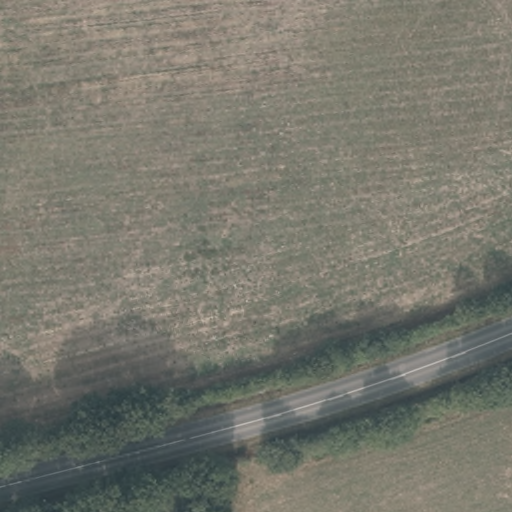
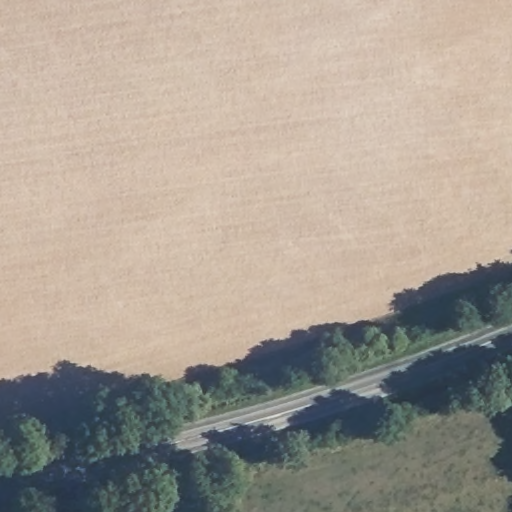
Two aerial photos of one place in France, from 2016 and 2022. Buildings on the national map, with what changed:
unchanged [(106,512),(80,512),(80,511),(104,505),(106,512)]

